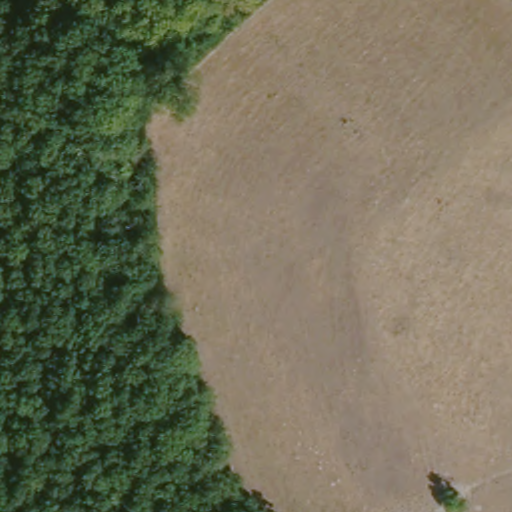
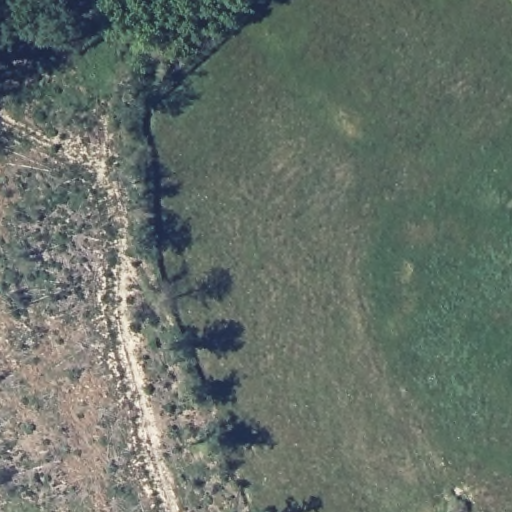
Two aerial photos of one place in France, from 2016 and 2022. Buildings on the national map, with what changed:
[]

